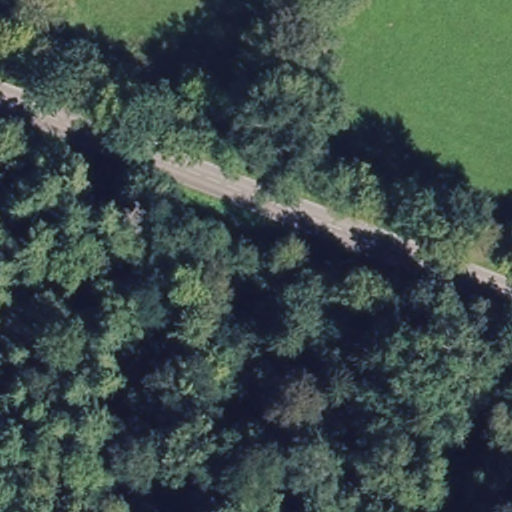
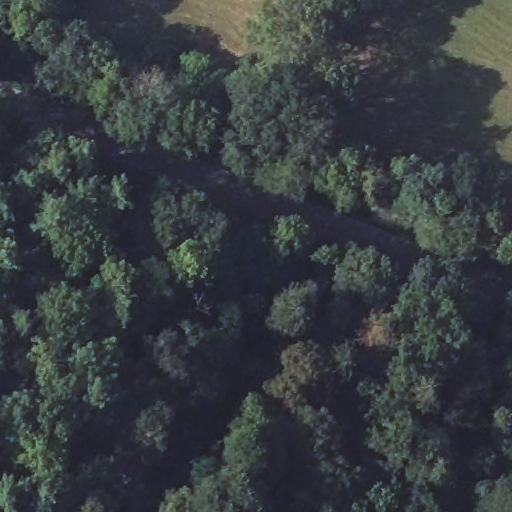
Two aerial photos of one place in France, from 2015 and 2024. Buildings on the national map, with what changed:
unchanged [(24,50),(32,52),(26,72),(23,80),(22,80),(13,76),(13,68),(15,46),(24,50)]

